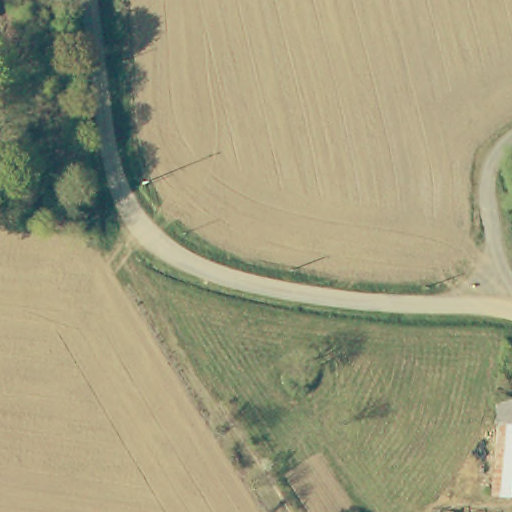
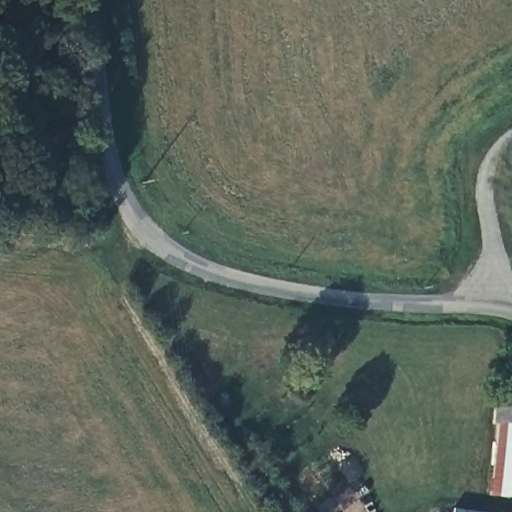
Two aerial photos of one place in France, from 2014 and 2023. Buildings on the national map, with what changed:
unchanged [(496,385),(512,385),(512,424),(495,423),(496,396),(496,385)]
unchanged [(512,424),(512,496),(489,494),(492,445),(492,423),(495,423),(512,424)]

